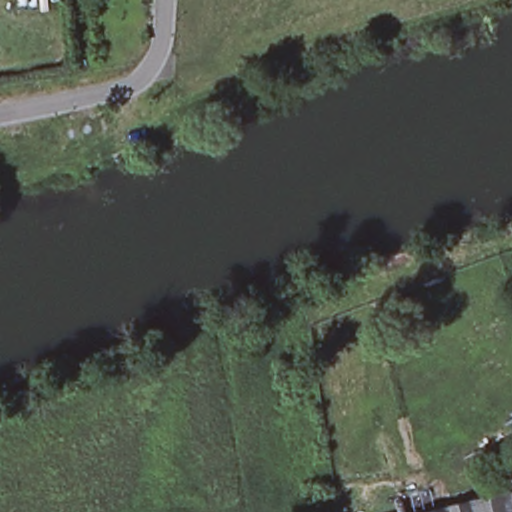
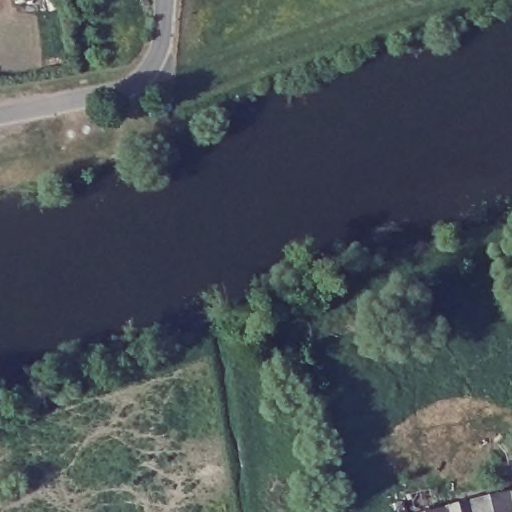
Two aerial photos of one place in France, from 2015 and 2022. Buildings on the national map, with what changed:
unchanged [(512,512),(420,512),(512,490),(512,512)]

